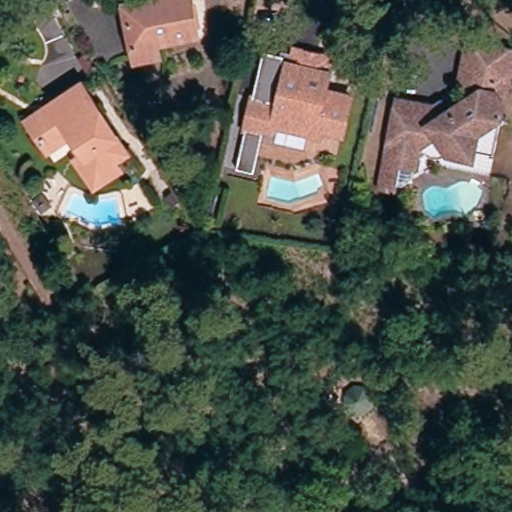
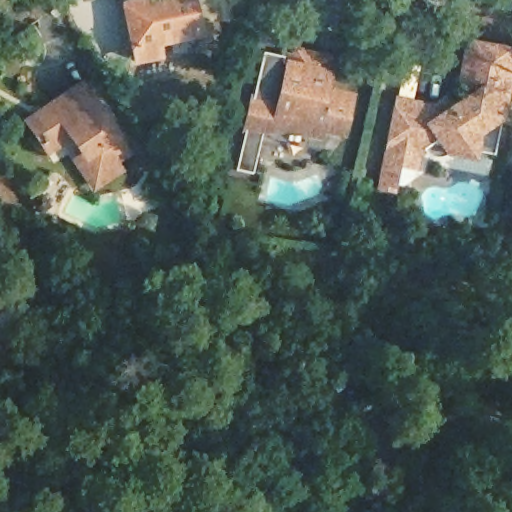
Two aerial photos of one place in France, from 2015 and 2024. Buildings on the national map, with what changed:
unchanged [(183,1),(192,42),(128,54),(120,13),(183,1)]
unchanged [(450,164),(434,161),(424,146),(402,161),(397,186),(386,193),(366,189),(383,106),(411,111),(420,113),(428,107),(442,110),(452,104),(445,93),(450,67),(454,50),(500,59),(486,126),(479,162),(460,157),(450,164)]
unchanged [(275,130),(272,139),(244,132),(252,100),(277,106),(287,65),(330,75),(326,92),(352,99),(343,138),(322,133),(320,140),(275,130)]
unchanged [(33,157),(14,129),(66,94),(111,161),(80,182),(68,164),(54,142),(33,157)]

